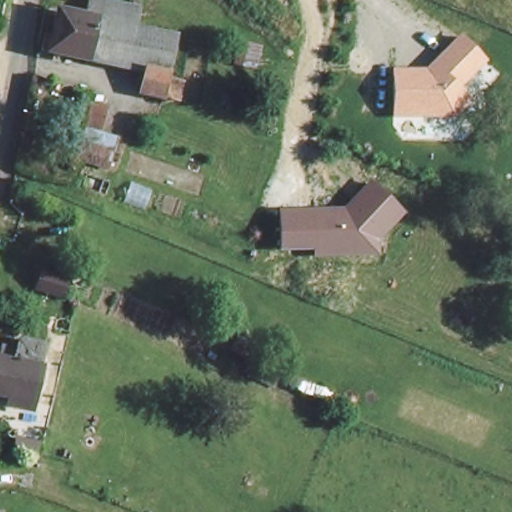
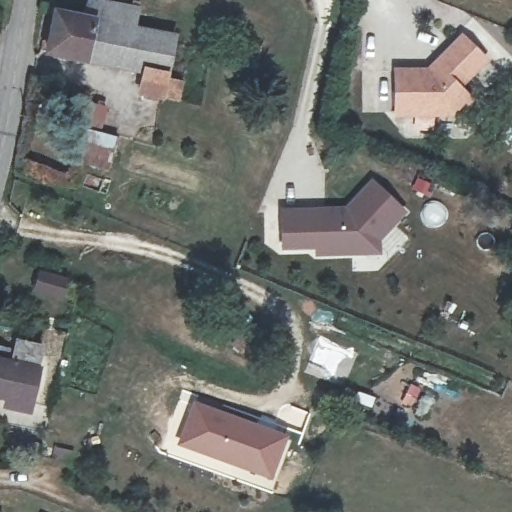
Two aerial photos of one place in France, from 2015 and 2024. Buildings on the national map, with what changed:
unchanged [(143,69),(45,47),(53,6),(84,12),(87,0),(117,0),(136,4),(133,23),(173,32),(170,48),(163,93),(140,89),(143,69)]
unchanged [(491,61),(463,87),(477,100),(457,117),(396,117),(396,68),(429,68),(462,33),(491,61)]
unchanged [(111,160),(67,147),(71,121),(80,122),(85,94),(107,99),(103,131),(116,136),(111,160)]
unchanged [(344,207),(371,179),(408,212),(379,239),(380,254),(314,258),(314,249),(280,251),(279,208),(344,207)]
unchanged [(1,397),(0,397),(0,356),(41,365),(32,414),(0,408),(1,397)]
new [(178,444),(193,401),(287,436),(271,478),(178,444)]

